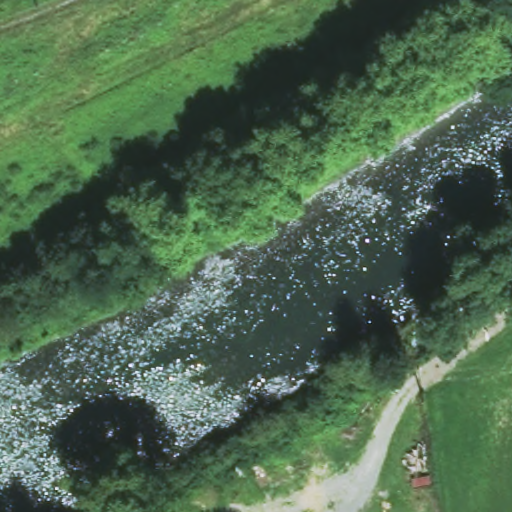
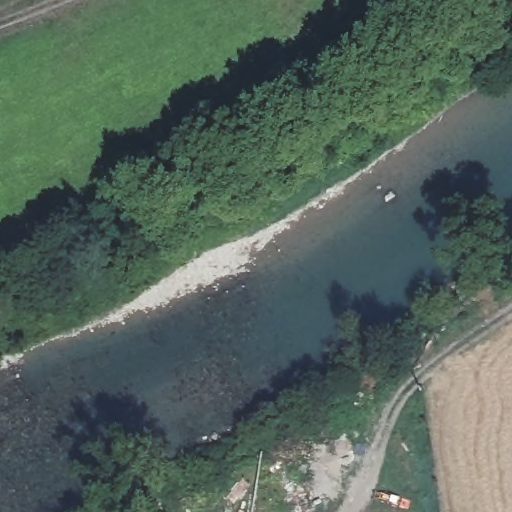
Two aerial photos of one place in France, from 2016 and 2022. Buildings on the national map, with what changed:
[]

